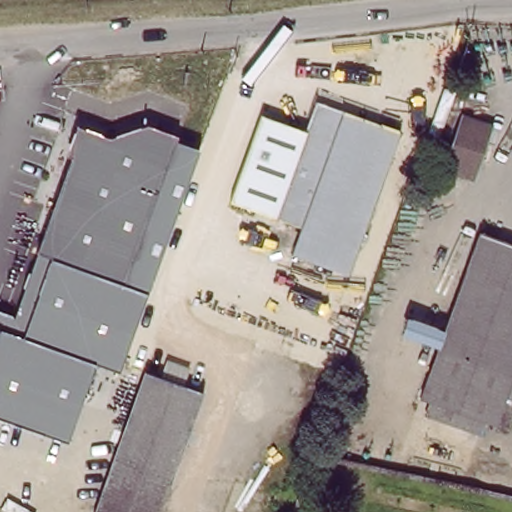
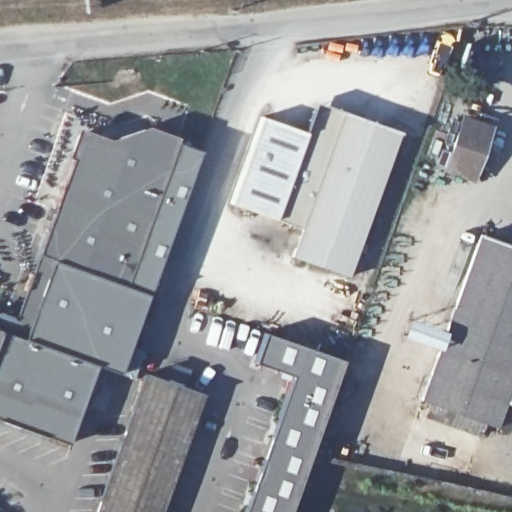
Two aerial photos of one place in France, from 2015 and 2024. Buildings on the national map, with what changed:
unchanged [(259,119),(304,135),(308,121),(314,105),(329,110),(343,115),(301,232),(226,206),(259,119)]
unchanged [(343,115),(400,135),(349,276),(291,256),(301,232),(343,115)]
unchanged [(491,129),(473,179),(444,169),(462,119),(491,129)]
unchanged [(123,285),(35,252),(68,159),(63,153),(75,125),(105,137),(147,124),(178,137),(123,285)]
unchanged [(120,372),(96,364),(68,444),(0,419),(0,313),(15,318),(35,252),(123,285),(176,143),(200,151),(120,372)]
unchanged [(430,417),(435,404),(422,399),(440,350),(402,335),(408,317),(446,331),(454,309),(480,232),(512,244),(512,404),(504,400),(503,405),(512,409),(512,417),(509,427),(497,422),(495,426),(484,421),(479,435),(430,417)]
new [(290,378),(252,365),(263,335),(342,362),(291,507),(290,512),(243,512),(290,378)]
unchanged [(159,512),(96,512),(146,374),(160,378),(166,360),(191,368),(185,387),(203,393),(159,512)]

